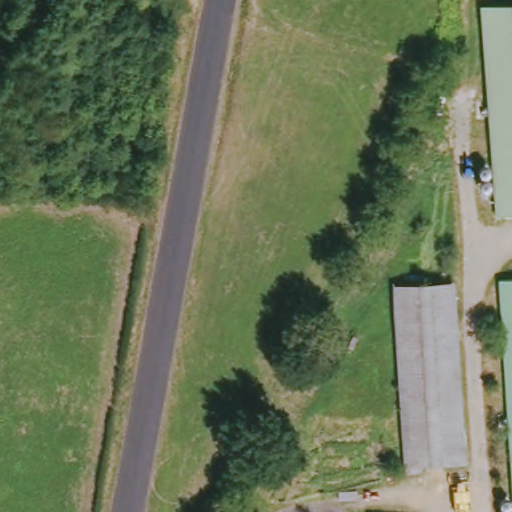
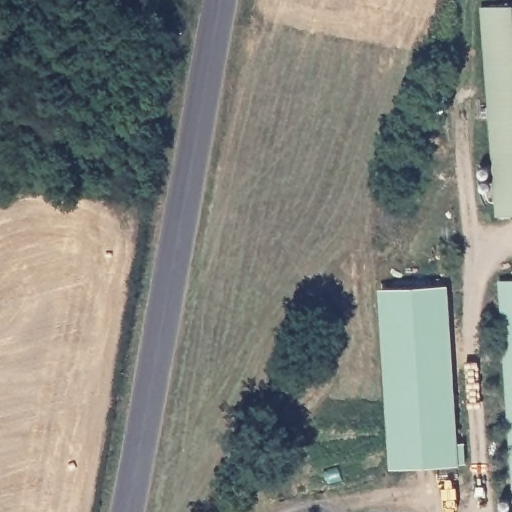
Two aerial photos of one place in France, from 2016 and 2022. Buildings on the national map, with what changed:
unchanged [(485,7),(512,7),(512,204),(483,204),(485,7)]
unchanged [(512,279),(512,512),(509,512),(499,280),(512,279)]
unchanged [(450,281),(460,461),(399,465),(391,285),(450,281)]

